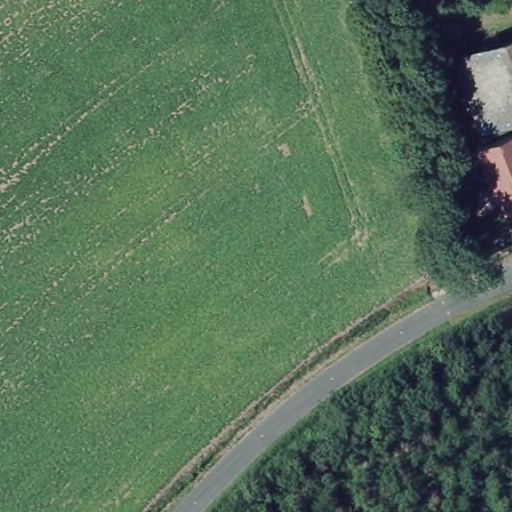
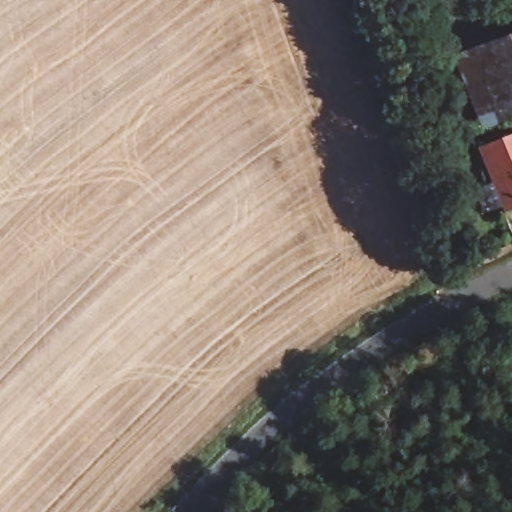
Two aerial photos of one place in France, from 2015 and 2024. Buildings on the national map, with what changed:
unchanged [(452,57),(512,33),(512,110),(477,124),(452,57)]
unchanged [(475,137),(512,123),(512,198),(500,202),(475,137)]

